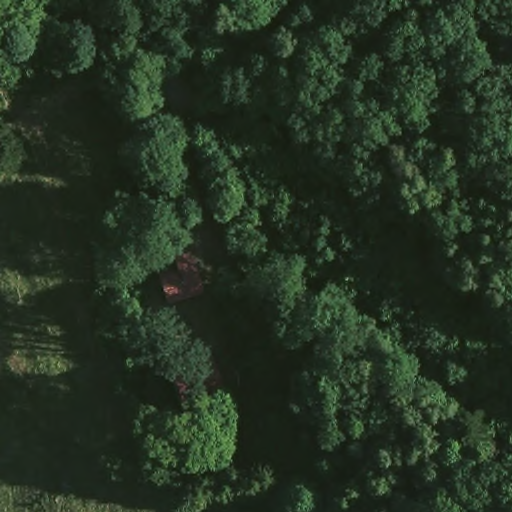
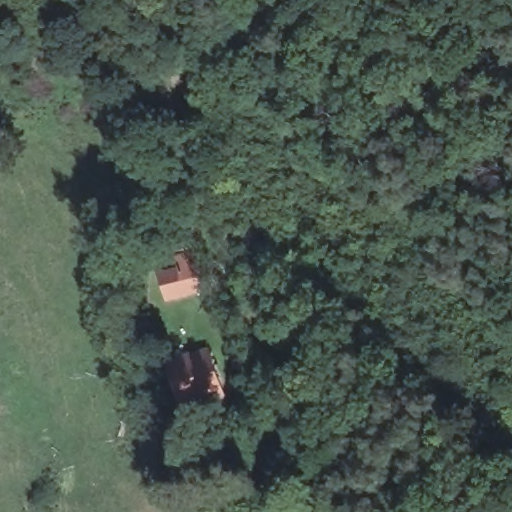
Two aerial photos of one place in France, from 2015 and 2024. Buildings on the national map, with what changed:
unchanged [(180,277),(193,272),(205,306),(173,317),(166,295),(185,288),(180,277)]
unchanged [(178,411),(163,368),(202,354),(216,398),(178,411)]

